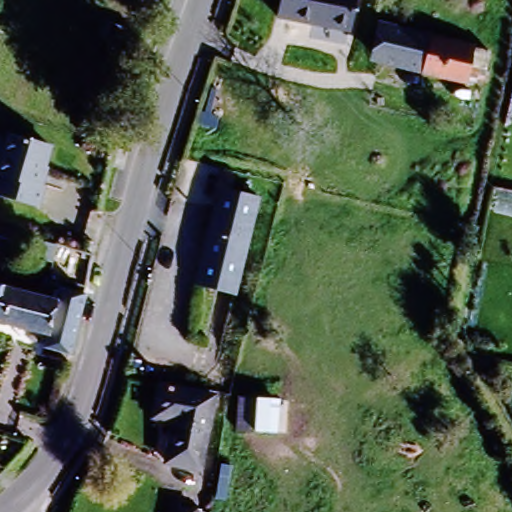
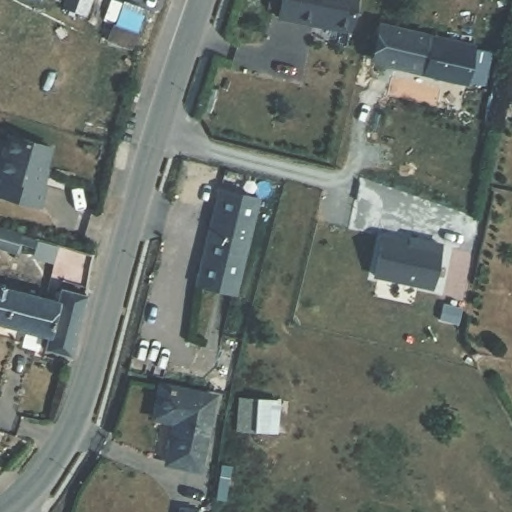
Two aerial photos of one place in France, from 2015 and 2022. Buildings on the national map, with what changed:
unchanged [(115,34),(121,16),(128,0),(152,0),(143,24),(136,42),(115,34)]
unchanged [(316,22),(284,15),(286,0),(358,0),(353,24),(352,29),(316,22)]
unchanged [(474,48),(465,85),(352,59),(363,22),(474,48)]
unchanged [(58,143),(53,204),(0,197),(14,132),(58,143)]
unchanged [(254,196),(228,297),(189,287),(216,186),(254,196)]
unchanged [(63,187),(77,192),(69,215),(55,210),(63,187)]
unchanged [(36,234),(33,244),(23,241),(20,248),(0,242),(0,222),(36,234)]
new [(376,274),(386,233),(423,241),(411,238),(411,235),(424,237),(443,242),(432,287),(376,274)]
unchanged [(57,241),(53,252),(39,247),(43,236),(57,241)]
unchanged [(53,306),(56,307),(46,336),(0,321),(0,288),(43,302),(53,306)]
unchanged [(63,289),(87,296),(71,356),(42,347),(46,336),(56,307),(63,289)]
unchanged [(211,395),(194,469),(164,463),(174,420),(151,415),(158,385),(211,395)]
unchanged [(278,402),(269,437),(234,430),(243,394),(278,402)]
unchanged [(206,510),(205,512),(189,512),(189,509),(206,510)]

